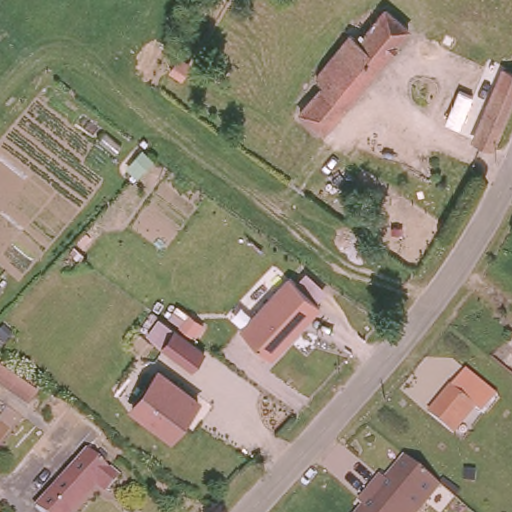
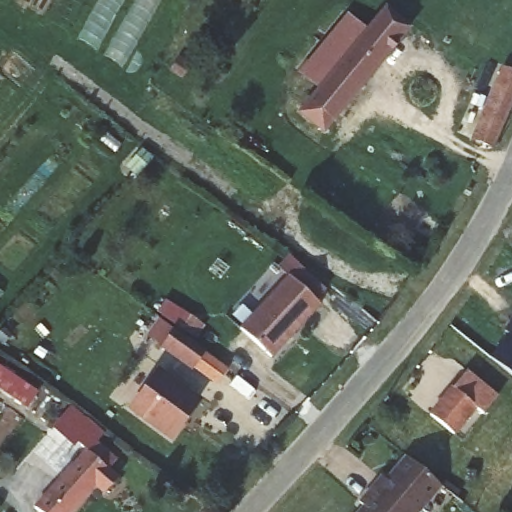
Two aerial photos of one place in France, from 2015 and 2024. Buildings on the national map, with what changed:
new [(46,24),(60,0),(164,0),(124,72),(46,24)]
unchanged [(324,87),(317,81),(313,85),(297,74),(347,14),(362,26),(356,33),(364,41),(389,10),(412,29),(324,132),(301,114),(324,87)]
unchanged [(474,139),(504,71),(512,76),(512,99),(506,114),(492,147),(474,139)]
unchanged [(287,275),(296,281),(296,279),(305,270),(326,289),(316,299),(316,300),(321,306),(272,358),(240,328),(287,275)]
unchanged [(161,348),(146,336),(156,319),(175,328),(206,350),(192,371),(161,348)]
unchanged [(509,334),(505,330),(512,321),(512,376),(492,359),(489,356),(509,334)]
unchanged [(0,383),(0,352),(43,384),(27,404),(0,383)]
unchanged [(173,442),(129,408),(159,365),(204,398),(173,442)]
unchanged [(450,386),(472,405),(451,431),(428,412),(450,386)]
unchanged [(106,490),(97,481),(68,512),(46,512),(37,504),(90,448),(119,476),(106,490)]
unchanged [(362,504),(357,500),(380,474),(384,478),(404,455),(436,483),(411,512),(355,512),(362,504)]

